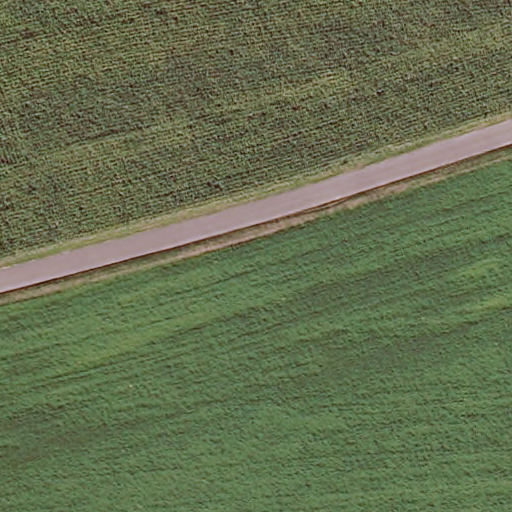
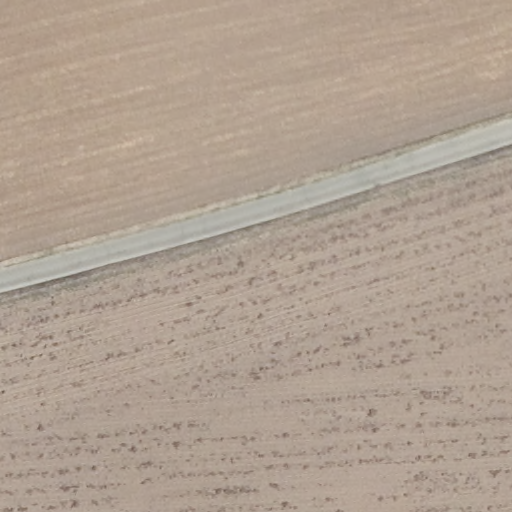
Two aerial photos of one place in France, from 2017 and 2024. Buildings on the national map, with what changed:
[]

